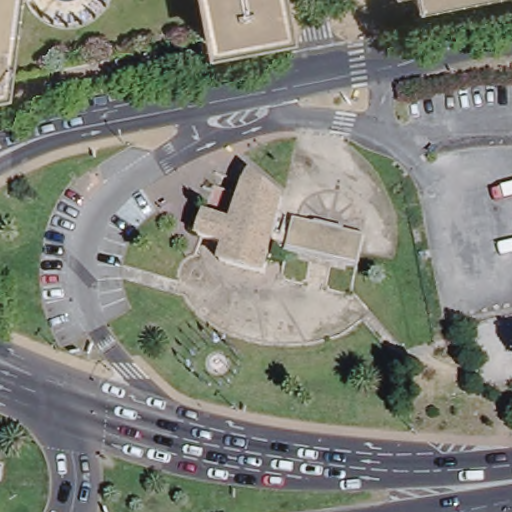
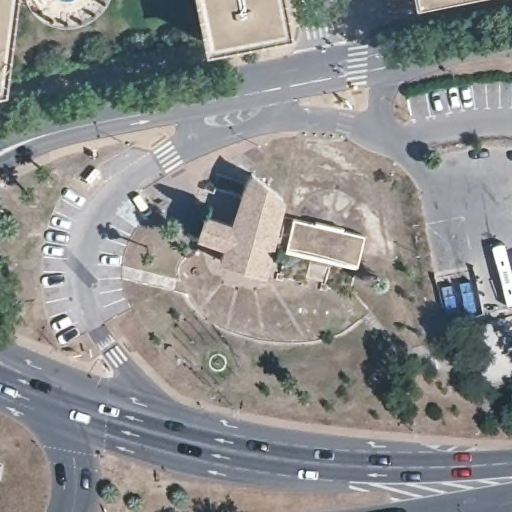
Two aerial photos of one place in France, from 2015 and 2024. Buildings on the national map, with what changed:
unchanged [(13,11),(10,12),(7,12),(0,60),(0,0),(16,0),(14,8),(13,11)]
unchanged [(194,0),(273,0),(279,31),(218,43),(203,45),(194,0)]
unchanged [(413,0),(435,0),(414,4),(413,0)]
unchanged [(221,260),(226,246),(200,238),(208,215),(233,224),(251,175),(287,202),(279,231),(268,275),(221,260)]
unchanged [(284,248),(292,218),(318,223),(319,216),(344,222),(343,230),(363,235),(355,266),(284,248)]

